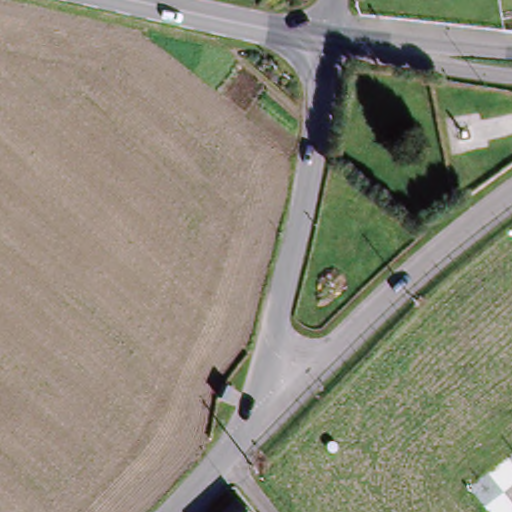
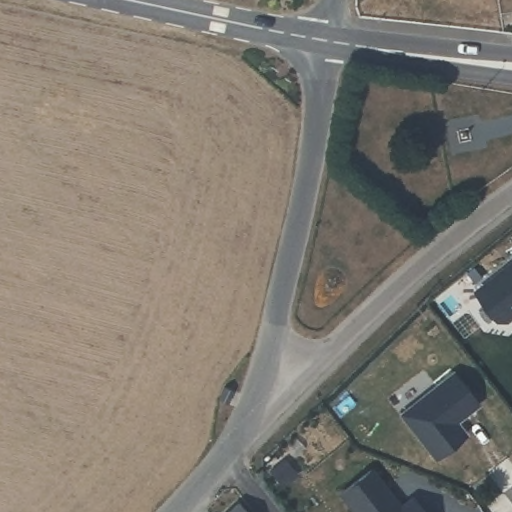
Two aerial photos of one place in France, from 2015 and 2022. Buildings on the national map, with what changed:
new [(503,321),(480,293),(512,265),(512,320),(511,321),(503,321)]
new [(454,372),(479,403),(465,415),(459,407),(450,415),(466,434),(436,458),(401,414),(454,372)]
new [(384,492),(377,498),(387,512),(355,512),(339,492),(367,471),(384,492)]
new [(421,512),(398,512),(412,500),(421,512)]
unchanged [(243,512),(231,512),(238,506),(243,512)]

